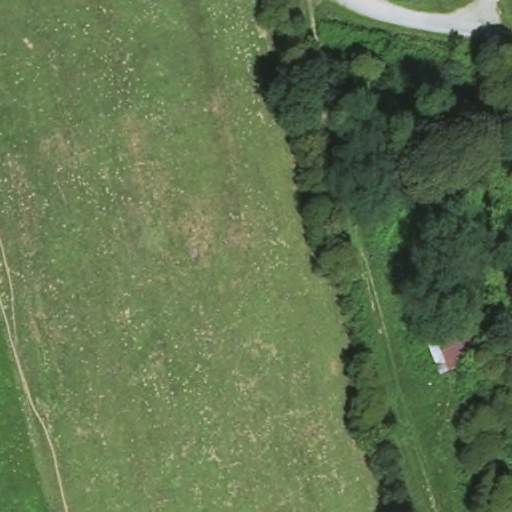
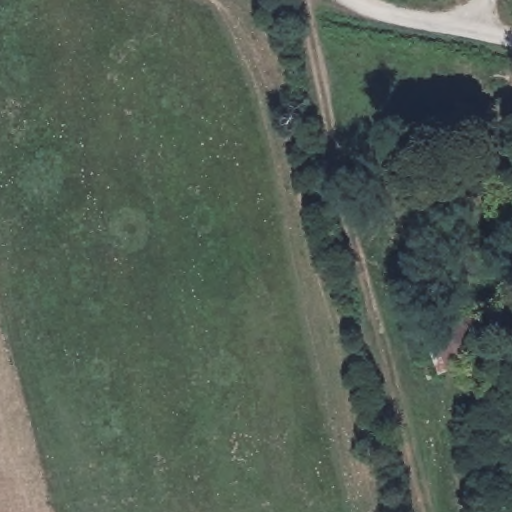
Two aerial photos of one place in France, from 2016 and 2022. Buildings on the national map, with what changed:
unchanged [(468,307),(485,347),(433,373),(419,332),(468,307)]

